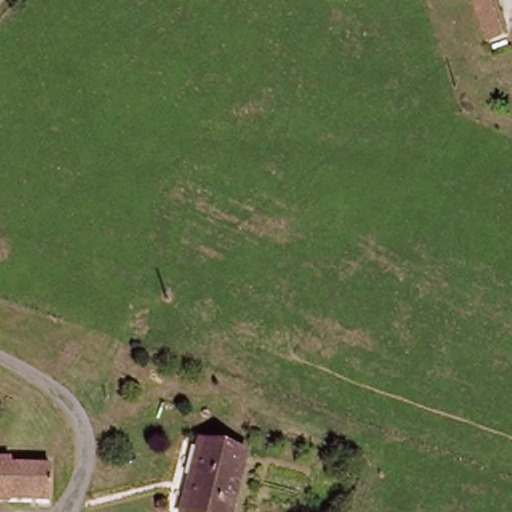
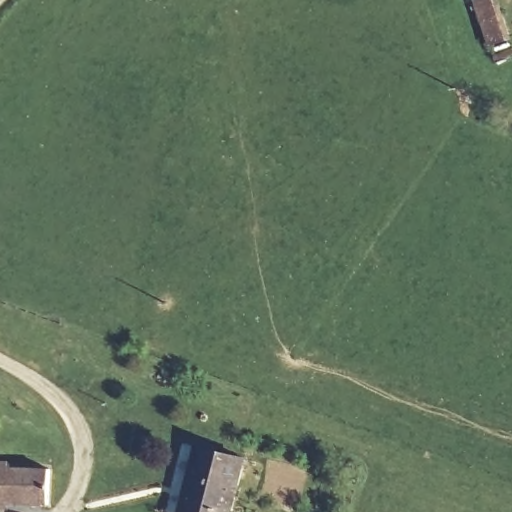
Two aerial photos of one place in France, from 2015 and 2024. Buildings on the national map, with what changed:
unchanged [(497,0),(509,32),(490,40),(474,0),(497,0)]
unchanged [(140,366),(167,377),(154,408),(127,397),(140,366)]
unchanged [(200,446),(247,460),(233,512),(181,512),(200,446)]
unchanged [(49,471),(47,505),(0,503),(0,469),(49,471)]

